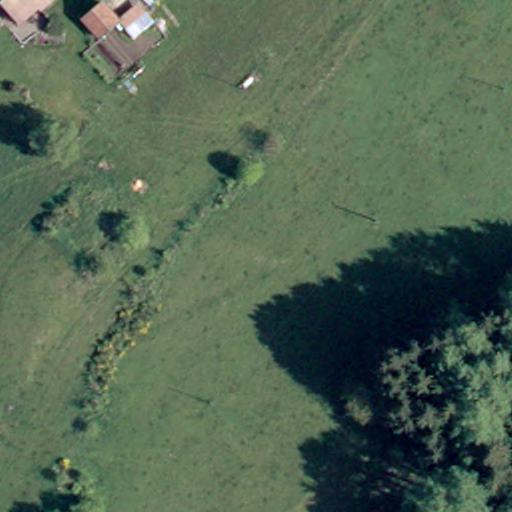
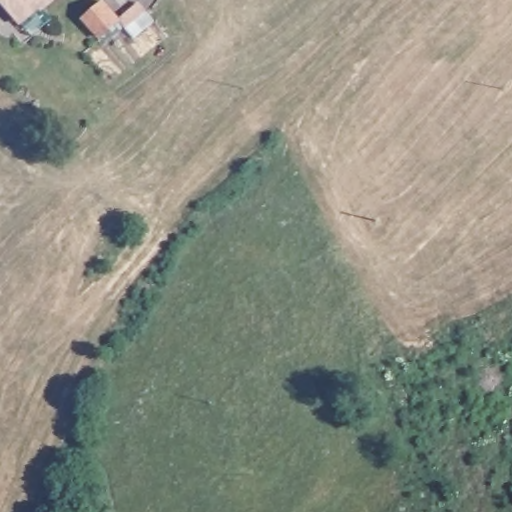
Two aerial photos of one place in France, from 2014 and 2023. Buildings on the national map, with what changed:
unchanged [(31,7),(15,20),(0,1),(0,0),(46,0),(34,10),(31,7)]
unchanged [(118,24),(99,42),(81,22),(100,5),(118,24)]

